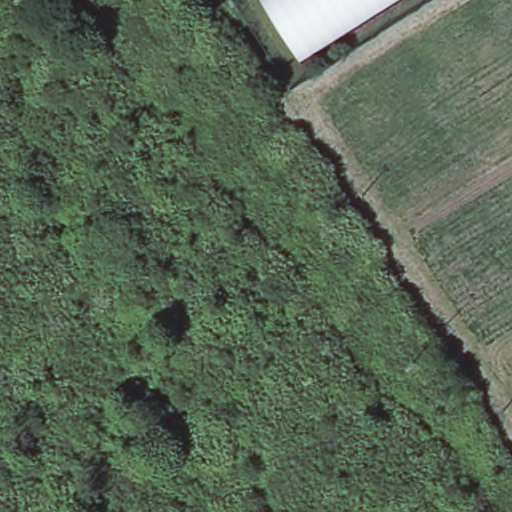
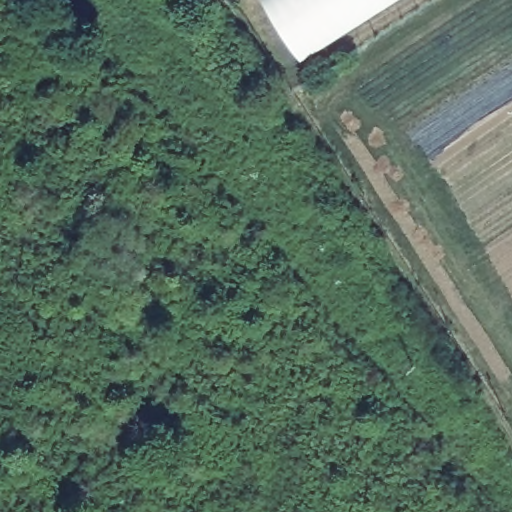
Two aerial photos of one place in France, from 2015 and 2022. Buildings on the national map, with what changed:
unchanged [(391,0),(297,59),(260,0),(391,0)]

